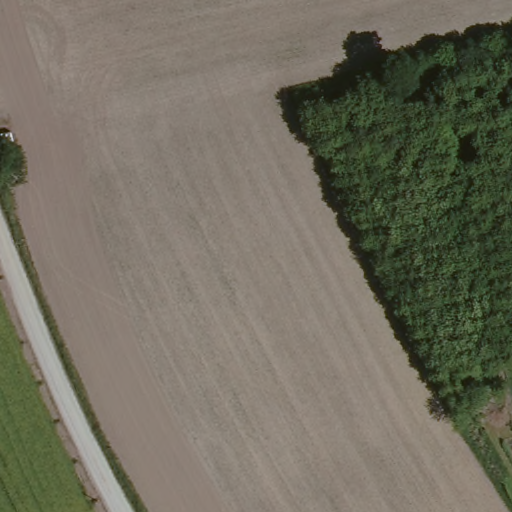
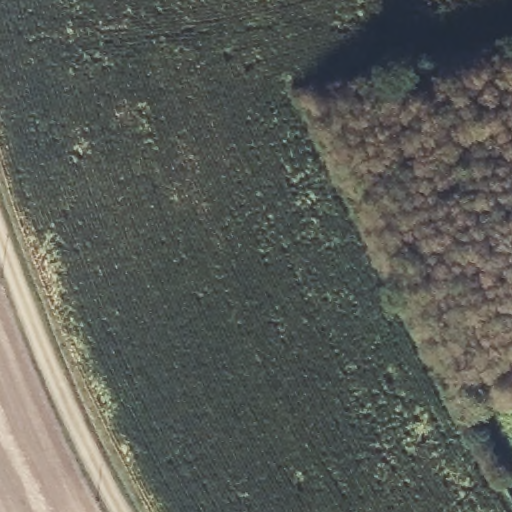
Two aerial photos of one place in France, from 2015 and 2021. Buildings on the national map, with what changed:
[]

